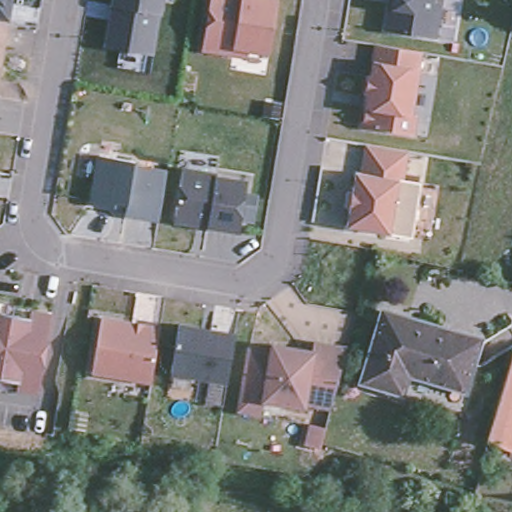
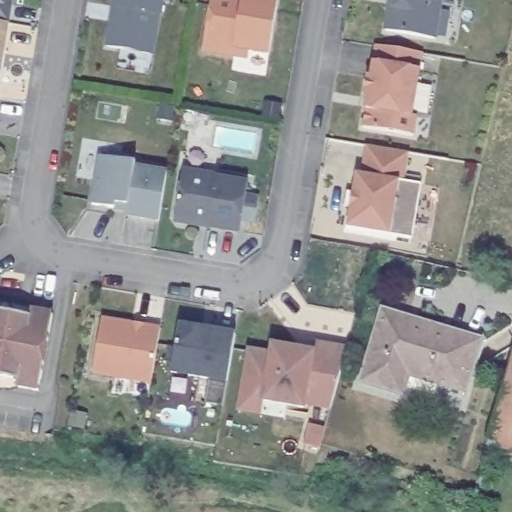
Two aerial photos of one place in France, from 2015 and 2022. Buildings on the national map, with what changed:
unchanged [(0,21),(0,0),(12,0),(8,22),(0,21)]
unchanged [(163,0),(160,14),(156,13),(149,54),(107,46),(111,21),(113,5),(114,0),(163,0)]
unchanged [(202,50),(210,2),(211,0),(272,0),(278,1),(269,53),(249,50),(248,58),(233,55),(202,50)]
unchanged [(385,30),(390,6),(391,0),(441,0),(435,39),(385,30)]
unchanged [(0,70),(0,21),(8,22),(0,70)]
unchanged [(368,95),(365,94),(368,76),(371,76),(377,45),(422,53),(411,115),(416,116),(412,135),(363,127),(368,95)]
unchanged [(356,172),(360,173),(365,145),(406,151),(409,152),(405,182),(400,181),(390,235),(347,228),(350,208),(344,207),(347,191),(352,192),(356,172)]
unchanged [(158,223),(125,218),(127,204),(114,202),(113,207),(87,203),(93,154),(135,159),(167,169),(158,223)]
unchanged [(179,222),(175,217),(182,170),(217,175),(217,178),(247,183),(240,232),(207,227),(192,225),(179,222)]
unchanged [(52,314),(40,382),(38,391),(0,384),(0,305),(52,314)]
unchanged [(152,382),(92,372),(102,318),(132,323),(143,325),(160,328),(152,382)]
unchanged [(413,329),(416,319),(478,337),(465,388),(409,374),(403,392),(362,381),(378,320),(413,329)]
unchanged [(202,328),(200,333),(209,334),(210,330),(235,334),(232,352),(227,381),(170,371),(178,325),(202,328)]
unchanged [(233,414),(237,392),(243,354),(265,358),(267,349),(291,353),(307,356),(308,347),(342,353),(327,409),(325,412),(299,408),(298,411),(258,404),(256,418),(233,414)]
unchanged [(512,453),(487,441),(505,380),(512,354),(512,453)]

